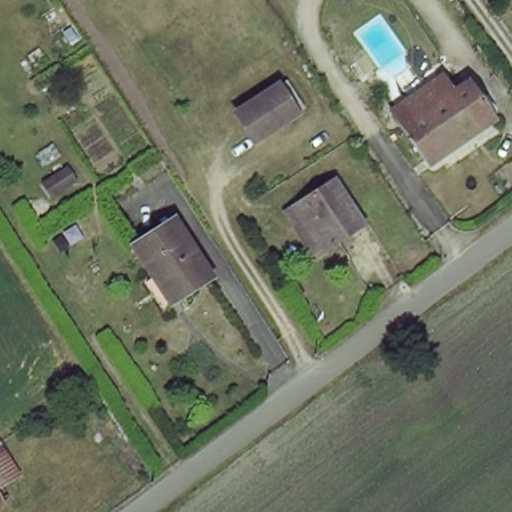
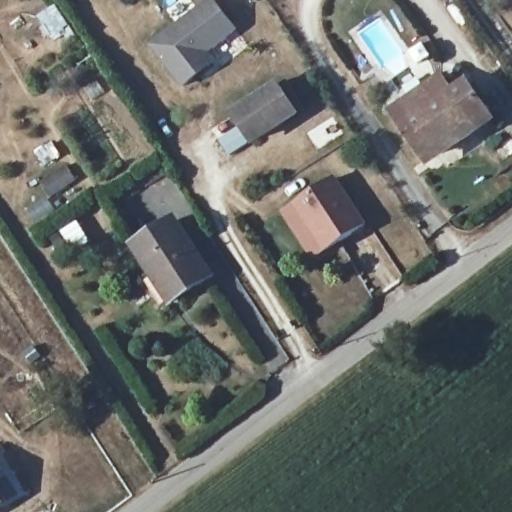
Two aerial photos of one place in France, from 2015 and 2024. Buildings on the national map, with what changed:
new [(181,87),(148,44),(205,0),(215,0),(238,30),(210,51),(218,62),(181,87)]
unchanged [(281,81),(305,114),(260,144),(237,110),(281,81)]
unchanged [(399,122),(448,87),(458,101),(476,87),(500,122),(433,169),(399,122)]
unchanged [(286,212),(298,204),(334,179),(364,224),(328,250),(316,258),(286,212)]
unchanged [(210,275),(173,301),(131,245),(169,219),(210,275)]
unchanged [(25,476),(3,487),(12,505),(0,511),(0,437),(25,476)]

